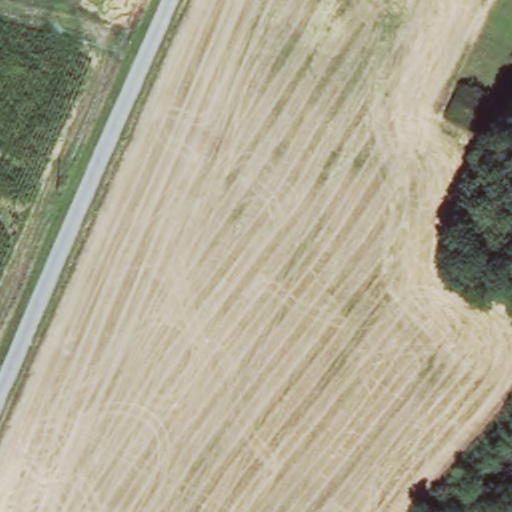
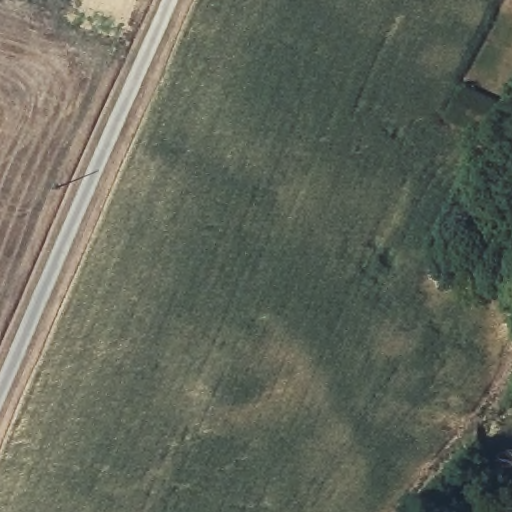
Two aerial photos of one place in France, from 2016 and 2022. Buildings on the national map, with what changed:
unchanged [(483,93),(503,102),(489,135),(450,119),(464,84),(483,93)]
unchanged [(512,134),(512,140),(510,140),(512,134)]

